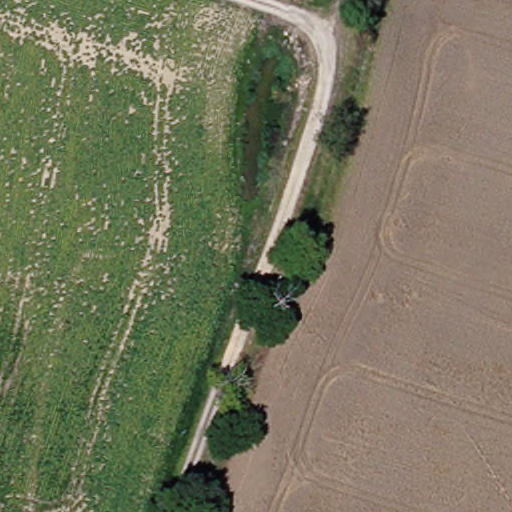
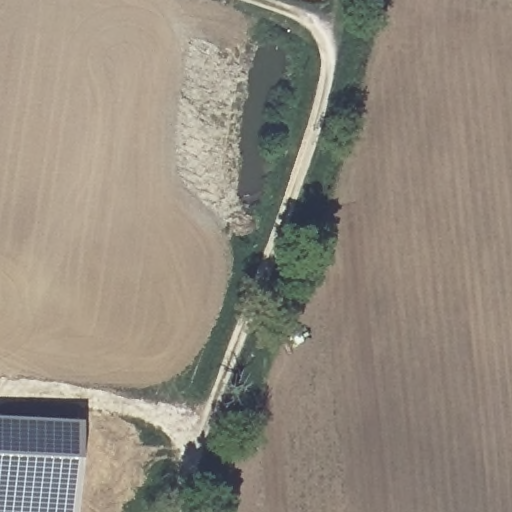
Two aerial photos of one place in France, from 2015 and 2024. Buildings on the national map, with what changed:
new [(72,512),(0,512),(0,423),(77,428),(72,512)]

